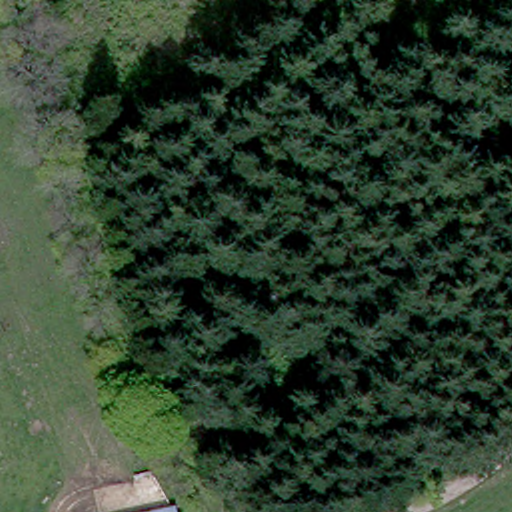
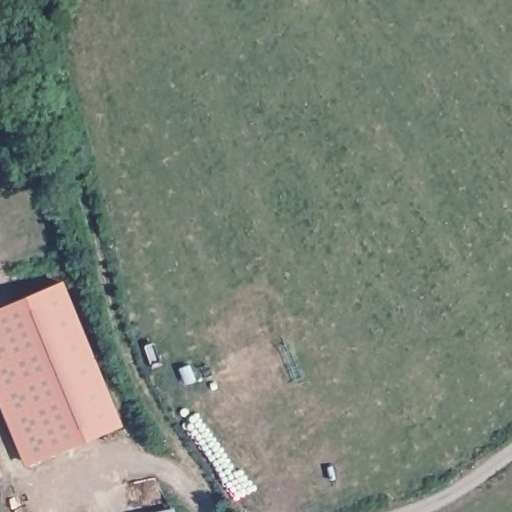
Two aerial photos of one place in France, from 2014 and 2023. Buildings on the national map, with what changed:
new [(124,425),(28,467),(0,401),(0,307),(64,281),(124,425)]
unchanged [(176,512),(153,512),(174,507),(176,512)]

